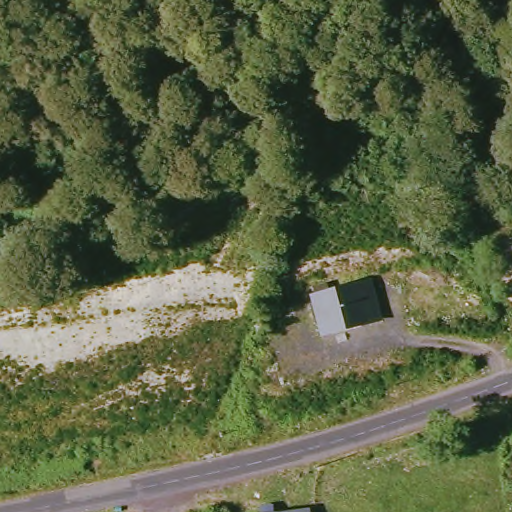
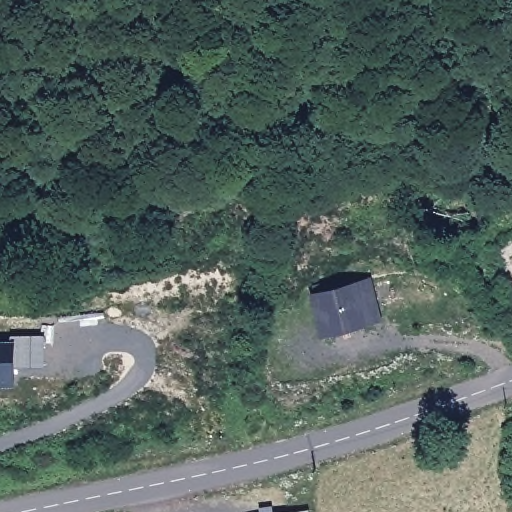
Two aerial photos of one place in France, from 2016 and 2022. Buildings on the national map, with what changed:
unchanged [(369,318),(322,329),(314,293),(370,281),(376,305),(378,316),(369,318)]
new [(11,343),(10,337),(41,338),(43,368),(15,368),(15,387),(0,387),(0,343),(11,343)]
unchanged [(286,512),(305,507),(306,512),(286,512)]

